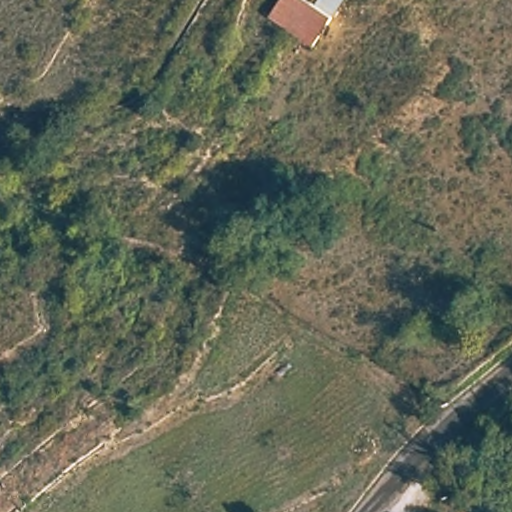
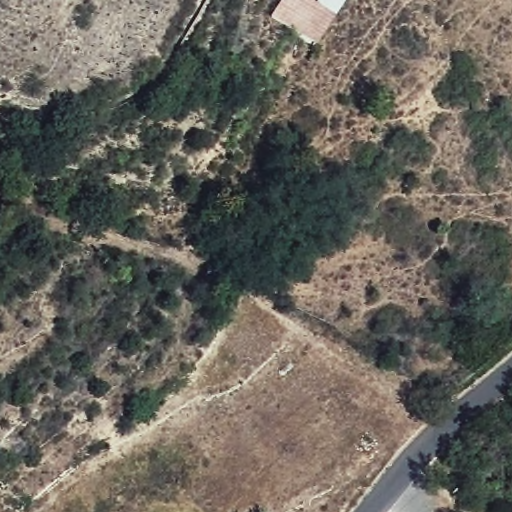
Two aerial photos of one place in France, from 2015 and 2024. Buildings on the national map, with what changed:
unchanged [(308,0),(315,5),(319,0),(349,0),(315,45),(274,13),(281,0),(308,0)]

